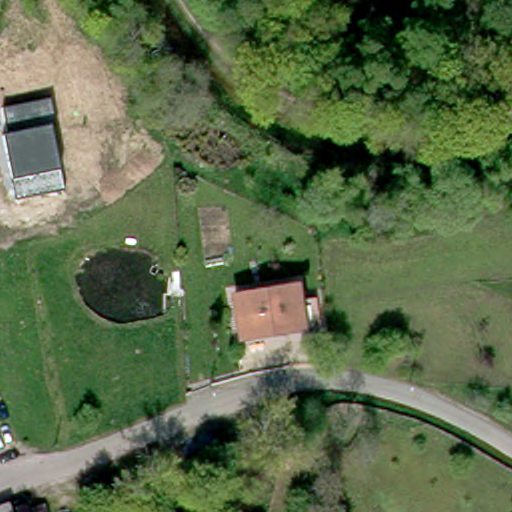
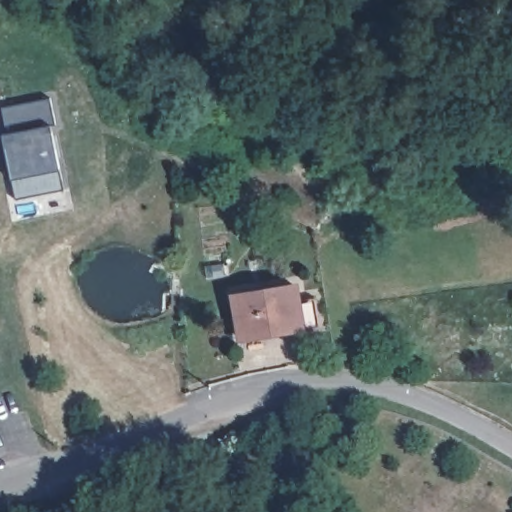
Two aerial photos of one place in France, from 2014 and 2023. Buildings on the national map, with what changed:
unchanged [(50,98),(55,129),(48,124),(57,167),(62,189),(15,198),(11,177),(1,136),(8,135),(1,109),(50,98)]
unchanged [(295,297),(311,295),(316,323),(300,327),(299,323),(236,333),(230,291),(275,284),(291,281),(295,297)]
unchanged [(0,420),(0,418),(1,420),(0,420)]
unchanged [(11,512),(0,512),(0,508),(8,505),(11,512)]

